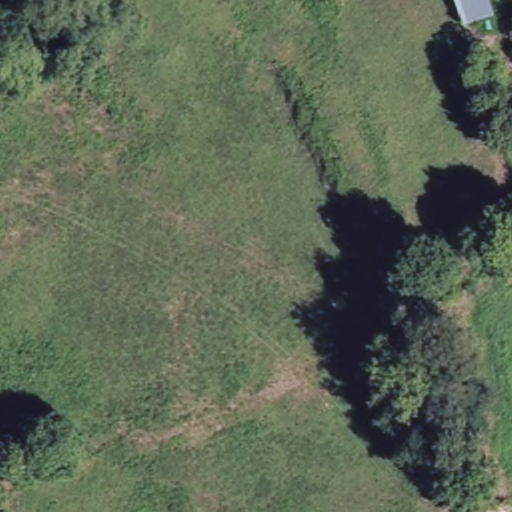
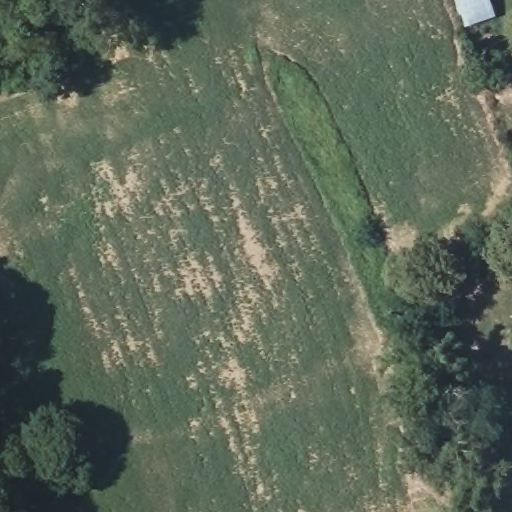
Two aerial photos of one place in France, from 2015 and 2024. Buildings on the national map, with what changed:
unchanged [(462,27),(454,0),(483,0),(489,15),(462,27)]

